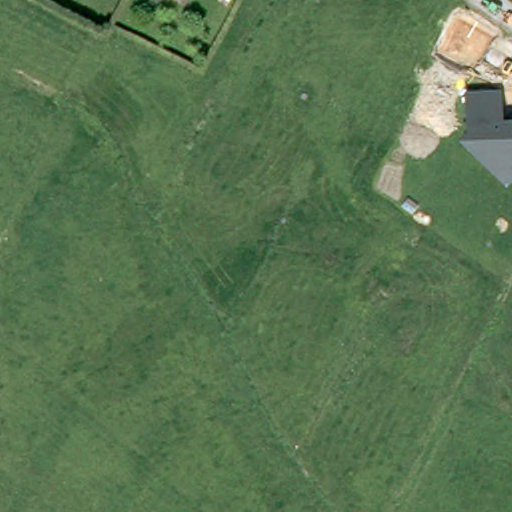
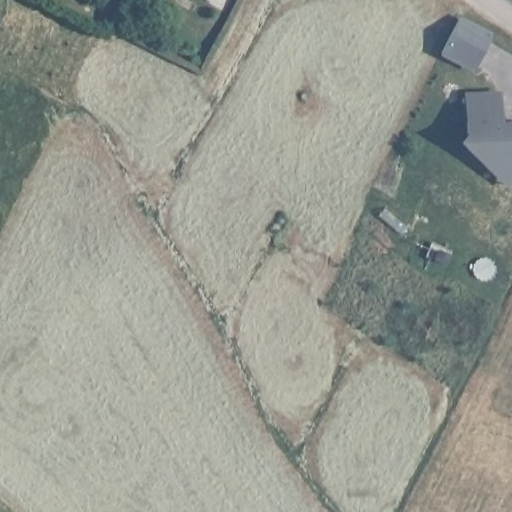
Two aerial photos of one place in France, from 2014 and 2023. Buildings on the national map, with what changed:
new [(443,53),(460,16),(492,32),(474,68),(443,53)]
unchanged [(503,92),(503,122),(512,122),(512,180),(505,186),(457,140),(463,130),(465,92),(503,92)]

